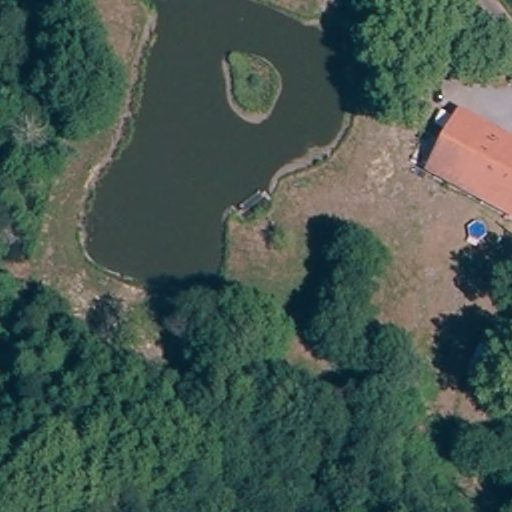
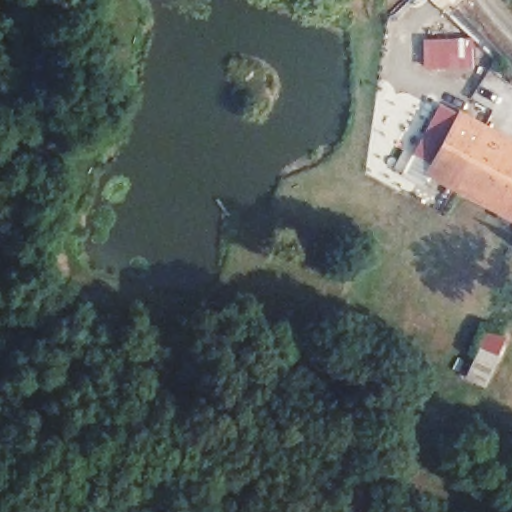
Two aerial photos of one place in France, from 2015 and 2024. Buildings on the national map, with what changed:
new [(425,38),(475,37),(475,67),(426,67),(425,38)]
unchanged [(512,149),(512,222),(430,180),(459,122),(512,149)]

